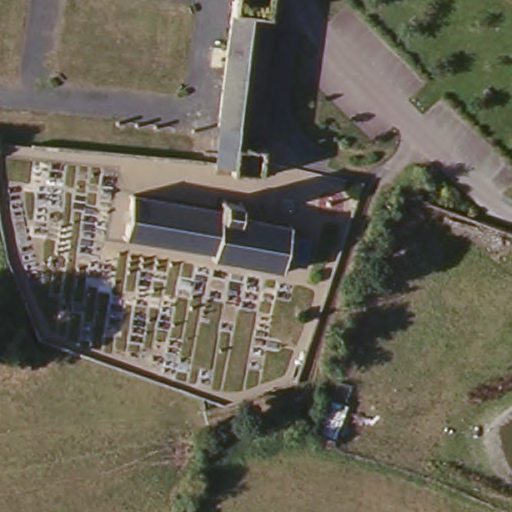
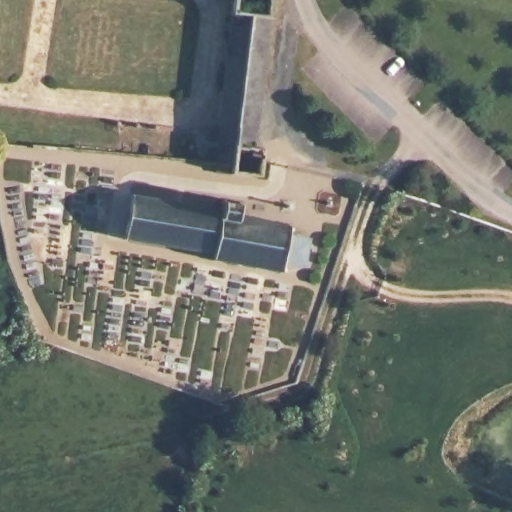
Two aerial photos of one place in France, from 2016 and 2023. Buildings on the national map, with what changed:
unchanged [(224,4),(224,0),(264,0),(263,8),(224,4)]
unchanged [(207,170),(224,4),(263,8),(248,148),(227,146),(224,170),(207,170)]
unchanged [(213,220),(214,211),(240,214),(239,224),(285,230),(283,237),(302,239),(297,267),(278,264),(277,274),(119,248),(125,210),(213,220)]

